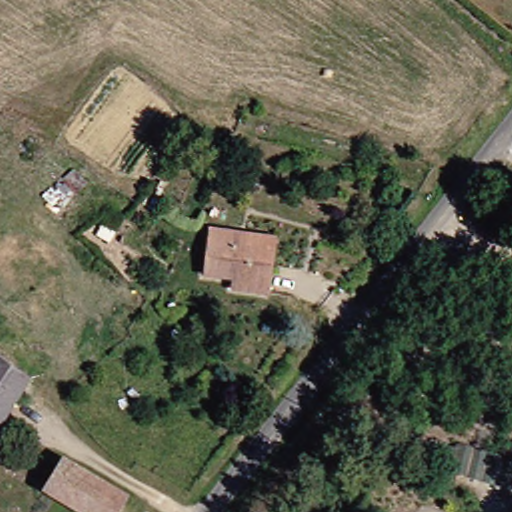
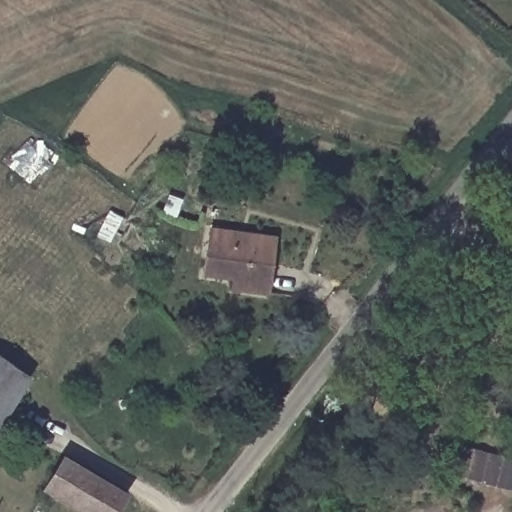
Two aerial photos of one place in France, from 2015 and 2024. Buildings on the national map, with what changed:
unchanged [(266,289),(232,286),(229,275),(204,273),(205,228),(269,235),(266,289)]
unchanged [(0,363),(21,377),(0,409),(0,363)]
unchanged [(495,484),(451,473),(457,446),(501,460),(512,463),(512,475),(509,487),(495,484)]
unchanged [(76,512),(35,487),(56,457),(116,495),(103,512),(76,512)]

